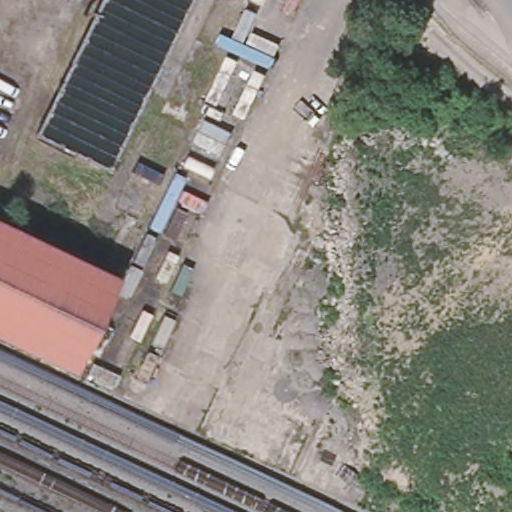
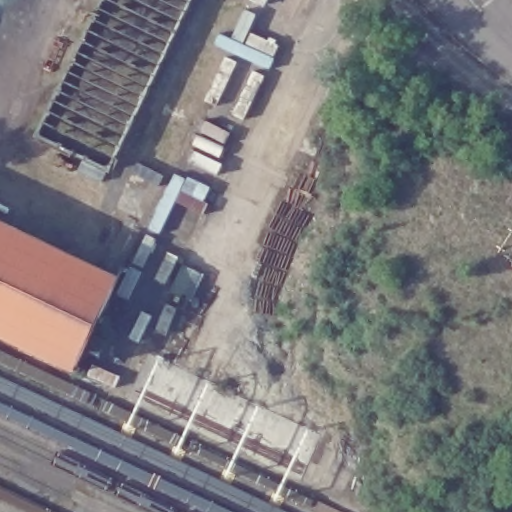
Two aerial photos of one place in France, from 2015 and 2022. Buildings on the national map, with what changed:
unchanged [(110,174),(36,139),(102,0),(192,0),(110,174)]
unchanged [(117,280),(72,370),(0,336),(0,225),(117,280)]

